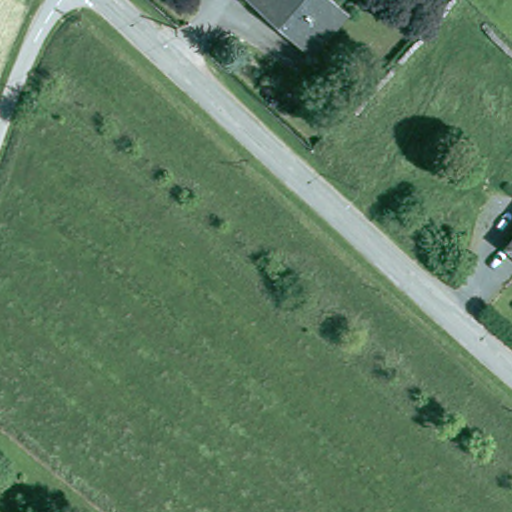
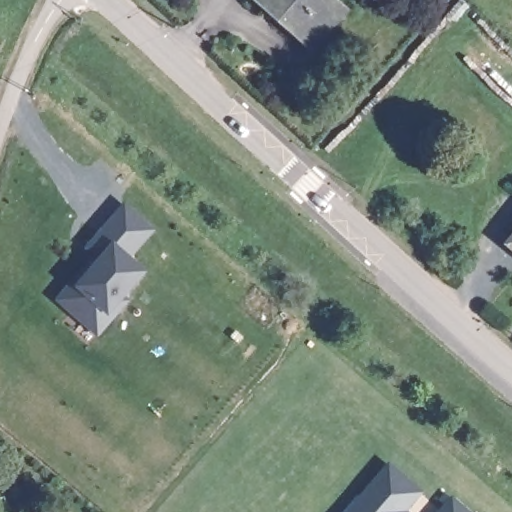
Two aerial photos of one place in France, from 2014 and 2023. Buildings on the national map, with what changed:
unchanged [(338,8),(310,40),(289,19),(284,24),(258,0),(329,0),(338,8)]
new [(156,230),(133,259),(147,272),(125,296),(131,302),(98,338),(55,299),(90,258),(82,251),(124,203),(156,230)]
unchanged [(510,245),(512,244),(512,247),(510,245)]
new [(442,511),(452,499),(467,512),(347,512),(389,464),(442,511)]

